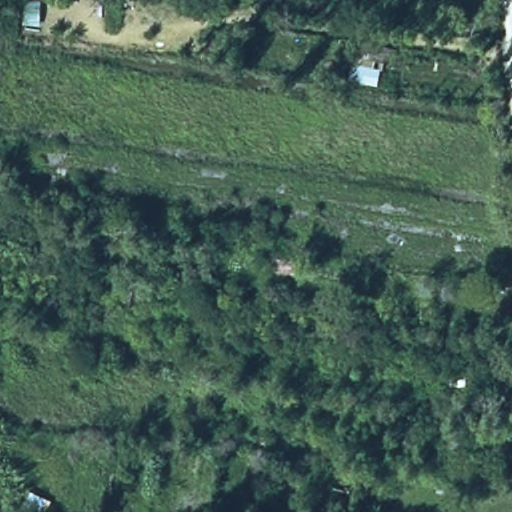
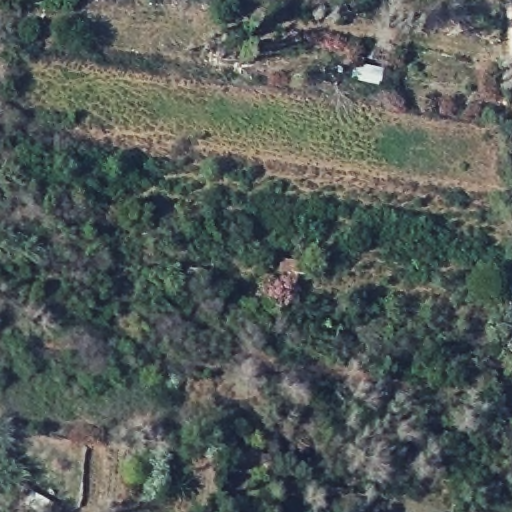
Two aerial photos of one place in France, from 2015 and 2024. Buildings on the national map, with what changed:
unchanged [(361,41),(388,49),(381,76),(395,77),(395,90),(379,89),(374,98),(346,86),(361,41)]
unchanged [(451,373),(453,365),(474,366),(474,384),(437,382),(435,372),(451,373)]

